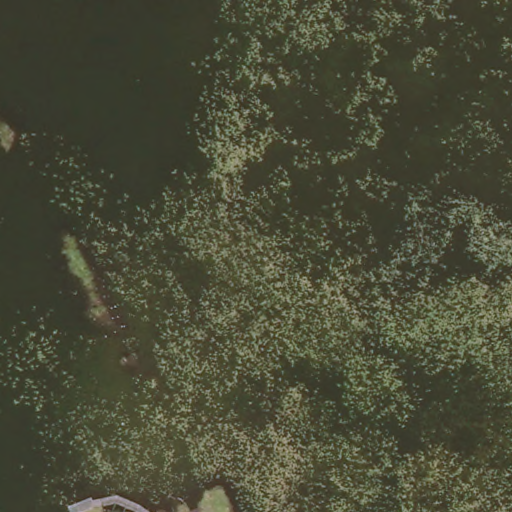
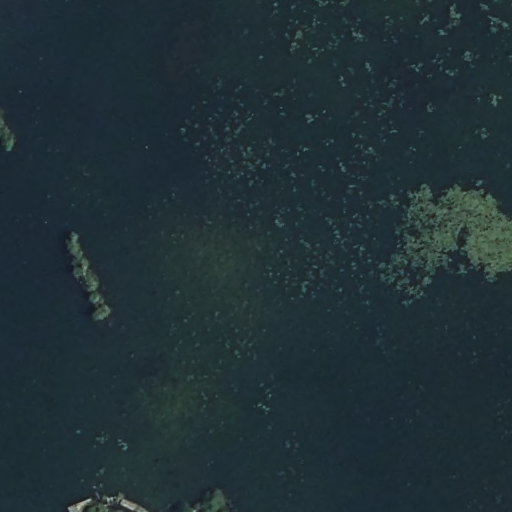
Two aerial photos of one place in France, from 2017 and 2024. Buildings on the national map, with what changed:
[]

